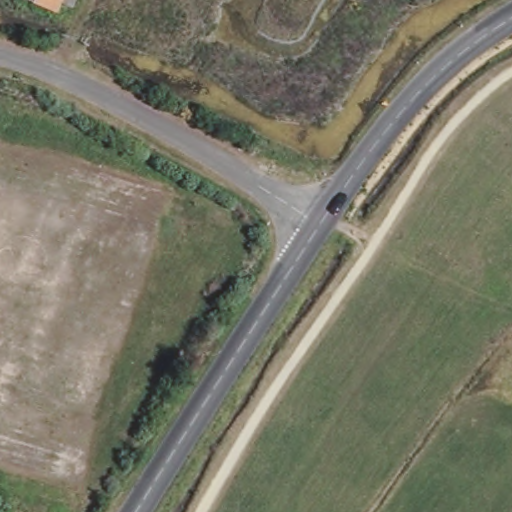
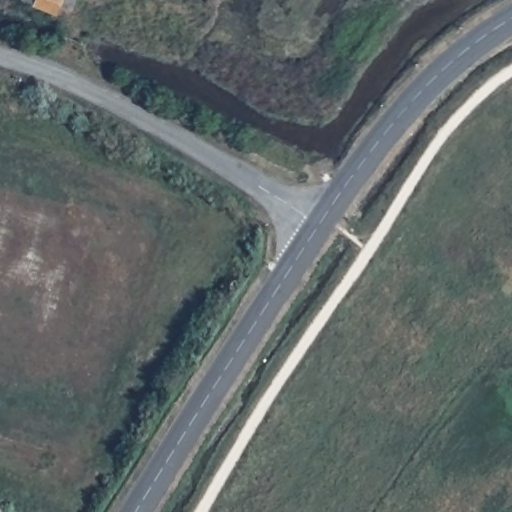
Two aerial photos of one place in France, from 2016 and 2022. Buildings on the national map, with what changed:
unchanged [(26,0),(76,0),(72,8),(61,4),(56,12),(26,0)]

